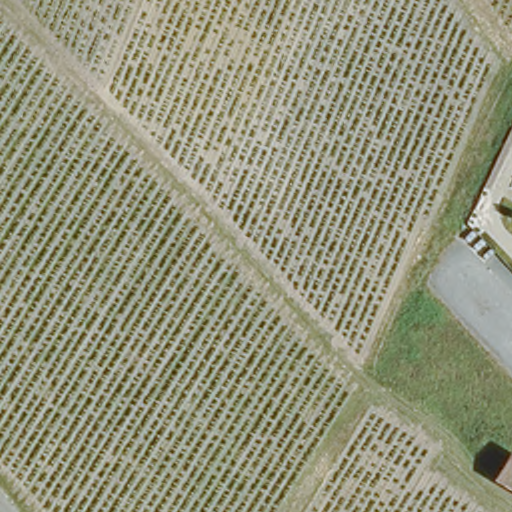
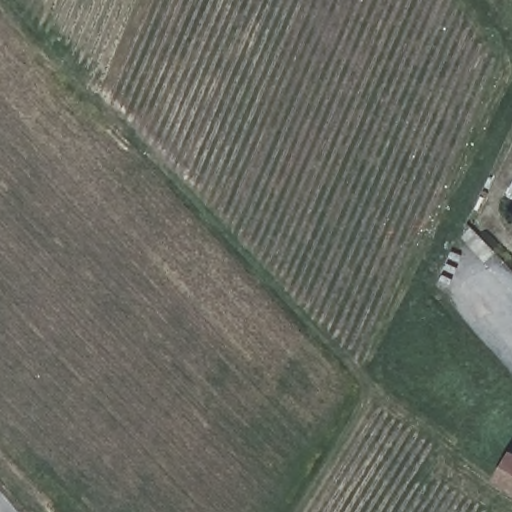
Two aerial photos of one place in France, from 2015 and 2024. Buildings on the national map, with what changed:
unchanged [(510,449),(512,450),(512,486),(494,475),(510,449)]

